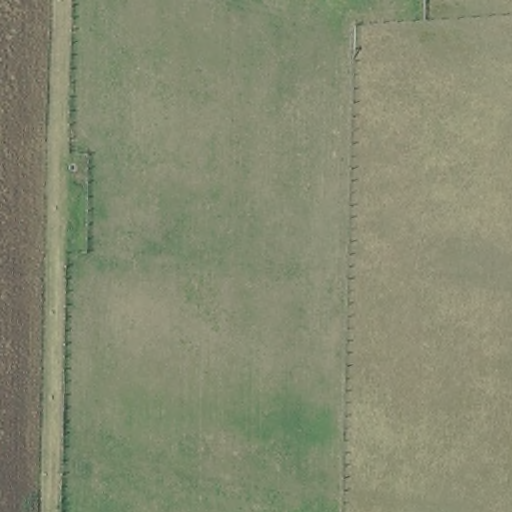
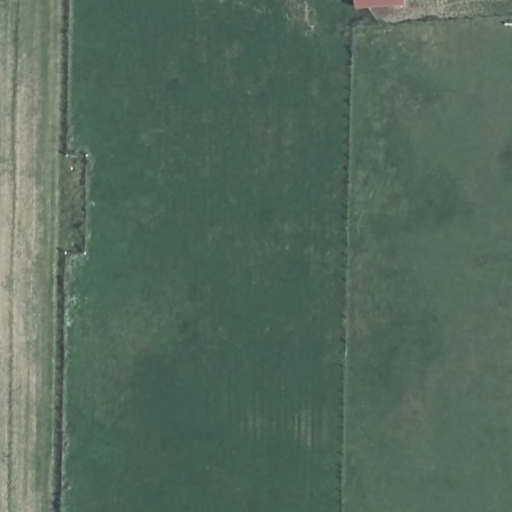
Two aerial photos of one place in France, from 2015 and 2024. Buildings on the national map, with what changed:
new [(405,4),(354,8),(354,0),(405,0),(405,4)]

